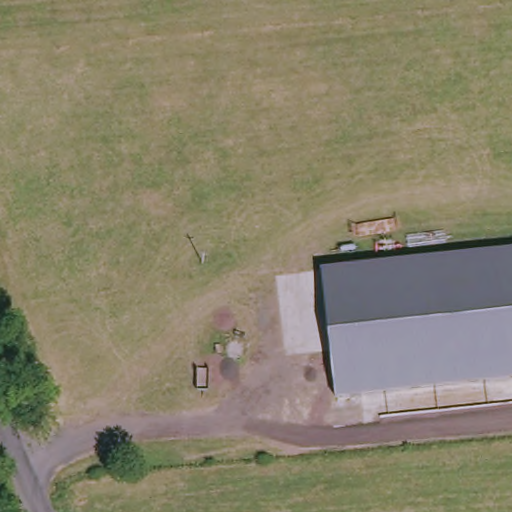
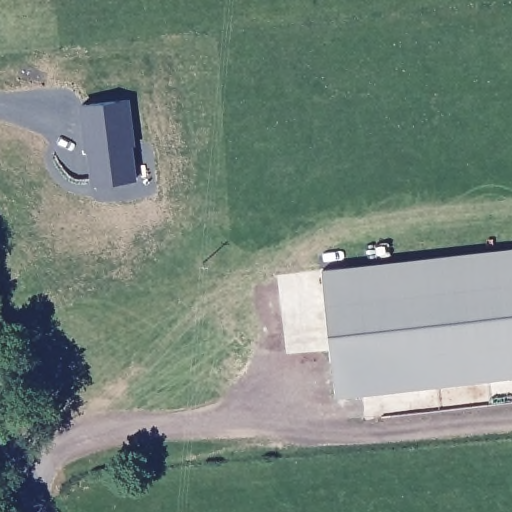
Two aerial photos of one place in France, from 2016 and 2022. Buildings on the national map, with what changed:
new [(127,94),(132,138),(129,139),(133,174),(92,179),(87,144),(85,144),(80,100),(127,94)]
unchanged [(322,269),(512,247),(512,377),(335,397),(322,269)]

